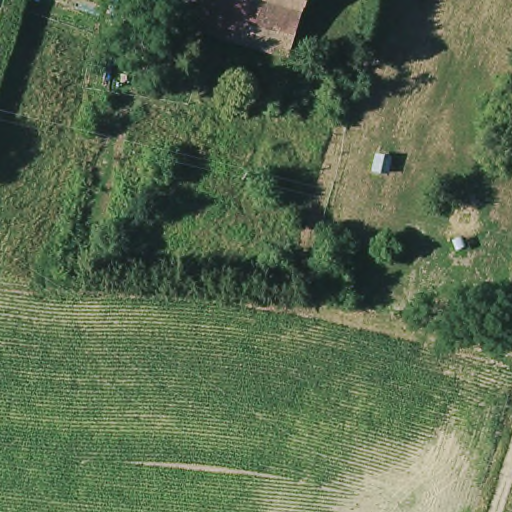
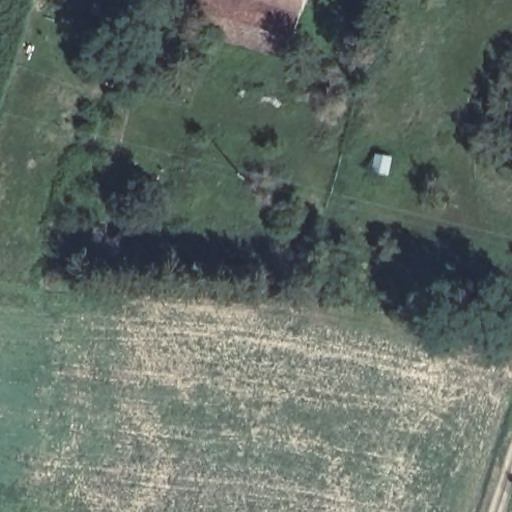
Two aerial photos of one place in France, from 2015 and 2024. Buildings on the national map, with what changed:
unchanged [(303,18),(287,13),(279,43),(273,42),(201,22),(208,0),(307,0),(303,18)]

